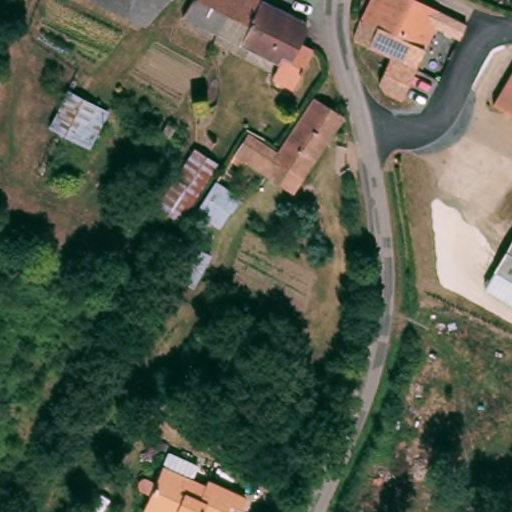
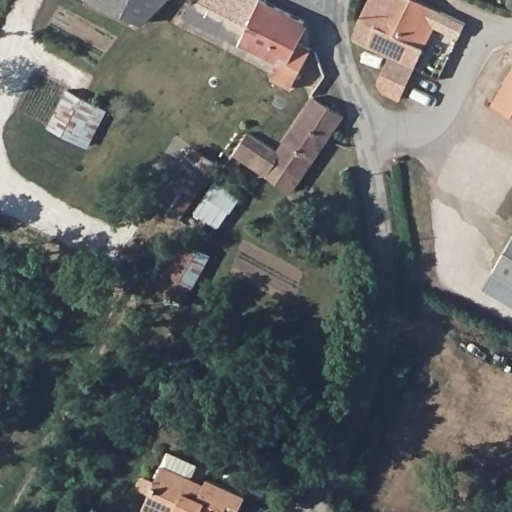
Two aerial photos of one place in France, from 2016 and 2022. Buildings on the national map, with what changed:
unchanged [(93,0),(169,0),(147,25),(93,0)]
unchanged [(303,45),(316,52),(296,91),(276,81),(283,67),(244,46),(222,35),(187,16),(195,0),(259,0),(307,22),(311,31),(303,45)]
unchanged [(377,24),(360,15),(368,0),(408,0),(392,32),(377,24)]
unchanged [(408,0),(423,0),(441,9),(466,20),(463,25),(458,35),(433,24),(412,66),(367,43),(377,24),(392,32),(408,0)]
unchanged [(512,78),(512,120),(494,110),(512,78)]
unchanged [(100,109),(81,143),(44,121),(62,87),(100,109)]
unchanged [(267,174),(232,151),(244,132),(246,129),(263,140),(272,145),(277,147),(313,94),(343,115),(301,176),(292,171),(284,185),(267,174)]
unchanged [(204,100),(204,111),(192,112),(192,100),(204,100)]
unchanged [(219,164),(182,221),(162,209),(199,151),(219,164)]
unchanged [(219,254),(192,300),(168,287),(196,240),(219,254)]
unchanged [(512,252),(512,284),(498,276),(512,252)]
unchanged [(142,492),(140,489),(139,485),(142,481),(149,481),(157,485),(165,468),(207,488),(209,482),(247,501),(242,512),(179,512),(146,512),(145,511),(152,496),(142,492)]

